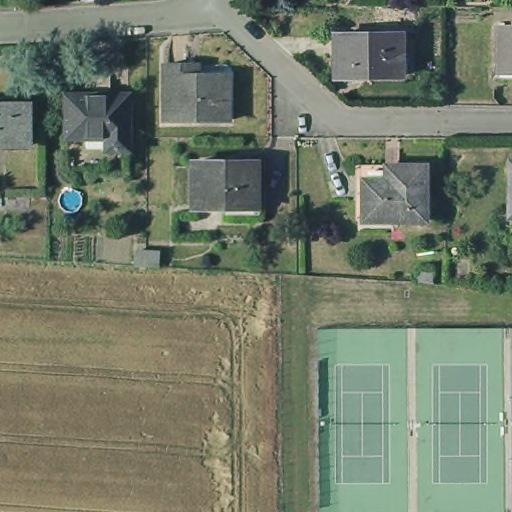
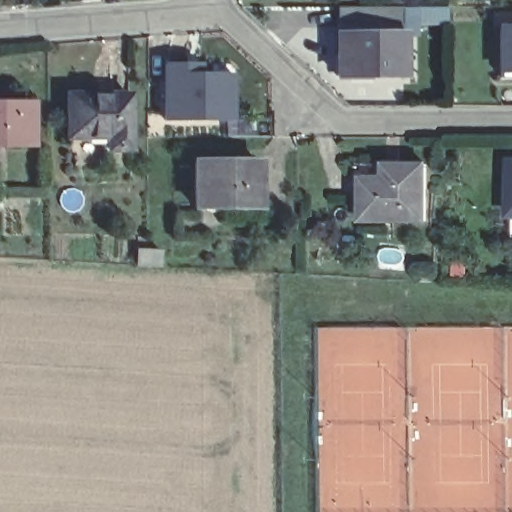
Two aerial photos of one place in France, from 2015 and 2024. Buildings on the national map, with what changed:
unchanged [(377,8),(402,7),(402,27),(377,28),(337,28),(337,8),(377,8)]
unchanged [(498,71),(498,66),(498,29),(512,29),(512,79),(498,79),(498,71)]
unchanged [(400,36),(401,79),(337,78),(337,36),(400,36)]
unchanged [(165,126),(165,71),(187,71),(198,71),(233,70),(240,76),(240,101),(230,101),(230,126),(165,126)]
unchanged [(127,150),(106,150),(106,140),(65,140),(65,97),(127,96),(127,150)]
unchanged [(0,146),(0,104),(35,104),(35,145),(0,146)]
unchanged [(256,207),(192,207),(192,161),(256,161),(256,207)]
unchanged [(502,220),(498,220),(500,165),(512,165),(512,240),(502,240),(502,220)]
unchanged [(420,222),(357,223),(357,166),(382,166),(394,166),(421,166),(420,222)]

